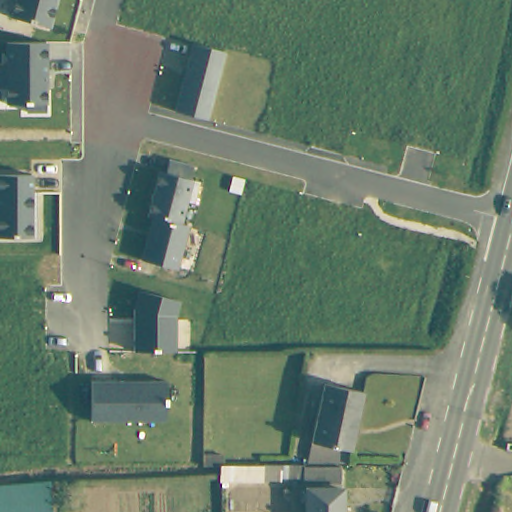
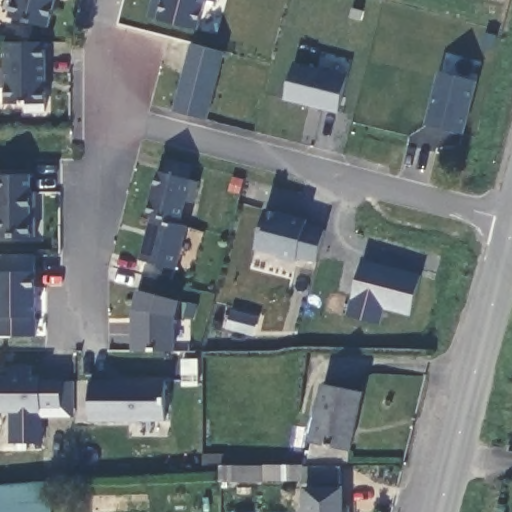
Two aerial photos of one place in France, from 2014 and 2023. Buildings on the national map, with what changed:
unchanged [(14,0),(55,0),(49,27),(10,19),(14,0)]
new [(197,29),(149,16),(153,0),(205,0),(197,29)]
new [(215,1),(212,0),(215,0),(215,1)]
unchanged [(25,106),(6,106),(6,93),(0,93),(0,68),(5,68),(5,42),(48,43),(47,112),(25,112),(25,106)]
unchanged [(175,111),(194,46),(226,53),(209,120),(175,111)]
new [(295,62),(346,76),(338,113),(286,101),(295,62)]
new [(440,71),(476,80),(462,132),(426,124),(440,71)]
unchanged [(140,259),(151,216),(146,213),(158,171),(165,172),(169,161),(193,167),(190,180),(198,182),(192,204),(186,203),(180,225),(187,227),(177,268),(140,259)]
unchanged [(0,176),(32,177),(32,239),(0,239),(0,176)]
new [(317,262),(299,257),(296,263),(280,258),(280,256),(255,250),(265,209),(307,220),(306,225),(325,230),(317,262)]
new [(0,336),(0,254),(35,255),(35,336),(0,336)]
new [(420,274),(410,313),(384,306),(380,322),(348,315),(362,260),(420,274)]
unchanged [(175,317),(175,352),(133,351),(132,309),(137,291),(180,301),(175,317)]
new [(25,368),(25,377),(35,377),(35,382),(55,382),(69,382),(69,416),(55,416),(35,416),(35,444),(5,444),(5,412),(0,412),(0,377),(4,377),(4,368),(25,368)]
unchanged [(167,382),(166,422),(90,421),(90,381),(167,382)]
unchanged [(361,398),(348,455),(310,446),(322,390),(361,398)]
unchanged [(340,488),(304,488),(304,482),(222,484),(221,471),(270,470),(340,471),(340,488)]
unchanged [(0,512),(0,490),(46,486),(48,512),(0,512)]
unchanged [(344,512),(307,512),(306,496),(343,495),(344,512)]

